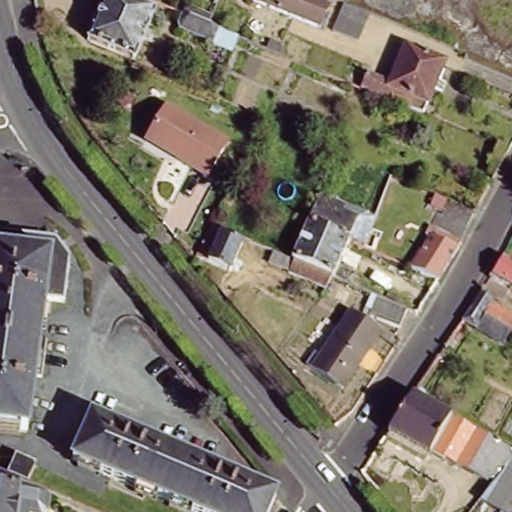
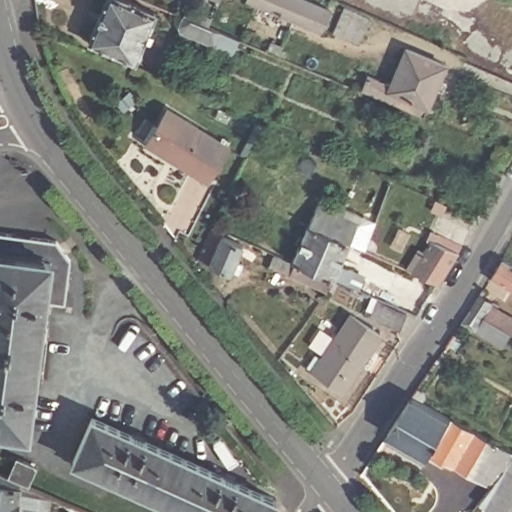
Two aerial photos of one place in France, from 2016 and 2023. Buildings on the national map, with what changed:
unchanged [(160,12),(139,62),(93,41),(110,0),(130,0),(160,12)]
unchanged [(333,8),(323,31),(252,0),(313,0),(333,8)]
unchanged [(348,4),(374,15),(364,39),(344,30),(348,20),(343,18),(346,9),(348,4)]
unchanged [(211,45),(180,31),(177,26),(181,15),(205,25),(238,39),(233,51),(226,49),(225,51),(211,45)]
unchanged [(445,64),(426,107),(385,89),(404,46),(445,64)]
unchanged [(231,140),(212,173),(153,138),(172,105),(231,140)]
unchanged [(304,267),(310,254),(293,246),(288,257),(268,248),(272,238),(289,245),(291,246),(296,234),(306,239),(329,185),(354,196),(352,202),(368,209),(341,268),(335,281),(304,267)]
unchanged [(228,191),(235,195),(224,218),(216,215),(228,191)]
unchanged [(470,211),(478,215),(475,222),(467,240),(442,281),(414,269),(434,238),(449,202),(470,211)]
unchanged [(221,226),(226,228),(233,231),(232,234),(252,243),(239,272),(206,258),(221,226)]
unchanged [(60,234),(75,254),(68,298),(51,295),(30,428),(0,424),(0,227),(60,234)]
unchanged [(496,270),(507,254),(512,257),(512,280),(496,270)]
unchanged [(470,307),(479,294),(512,314),(512,332),(511,331),(503,345),(461,321),(470,307)]
unchanged [(375,315),(382,299),(410,312),(402,328),(375,315)]
unchanged [(382,332),(347,388),(317,369),(352,313),(382,332)]
unchanged [(453,416),(431,455),(392,433),(417,396),(453,416)]
unchanged [(96,412),(281,494),(272,512),(207,512),(78,454),(96,412)]
unchanged [(512,450),(512,463),(507,469),(496,485),(450,460),(448,464),(431,455),(453,416),(512,450)]
unchanged [(38,467),(31,485),(33,486),(50,493),(57,496),(53,508),(49,512),(0,512),(0,472),(11,476),(13,477),(22,459),(38,467)]
unchanged [(496,485),(507,469),(512,463),(512,512),(504,512),(484,500),(496,485)]

